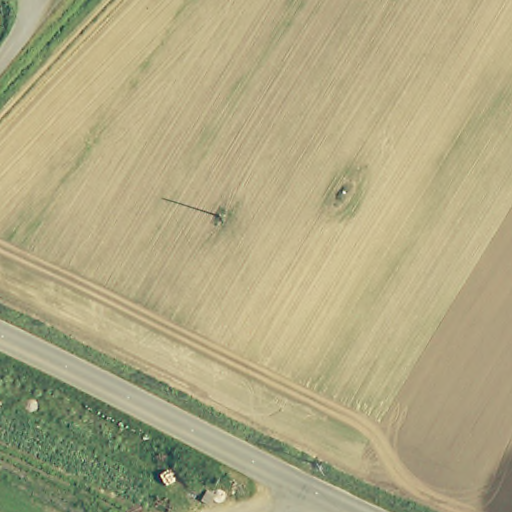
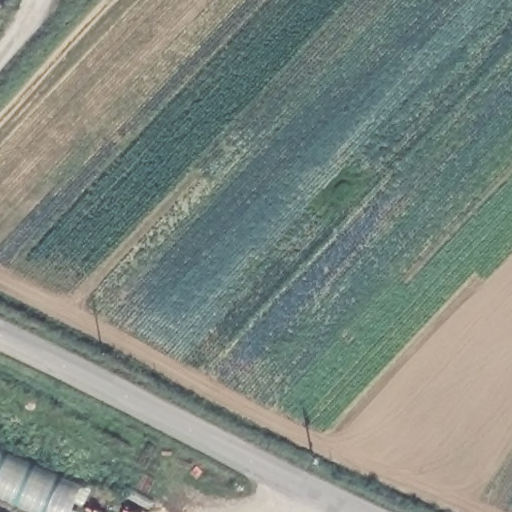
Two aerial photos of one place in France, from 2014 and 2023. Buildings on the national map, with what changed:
new [(0,493),(0,450),(82,487),(71,512),(42,512),(0,493)]

